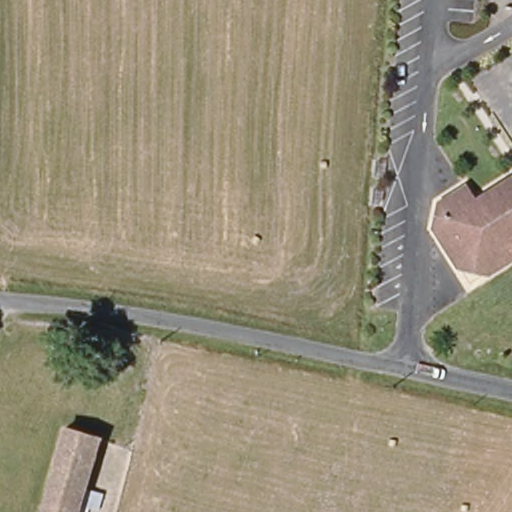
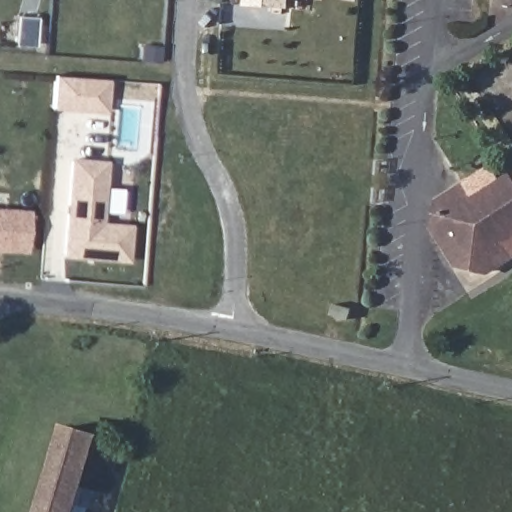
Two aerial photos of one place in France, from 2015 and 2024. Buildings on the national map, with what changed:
new [(288,9),(245,7),(245,0),(289,0),(288,9)]
new [(60,76),(112,80),(110,112),(58,108),(60,76)]
new [(76,161),(109,164),(105,226),(134,228),(131,262),(69,257),(76,161)]
unchanged [(511,263),(489,279),(462,275),(435,232),(438,210),(466,192),(475,206),(512,182),(512,241),(501,248),(511,263)]
new [(0,253),(0,209),(30,211),(26,254),(0,253)]
unchanged [(98,439),(82,512),(40,512),(58,430),(98,439)]

